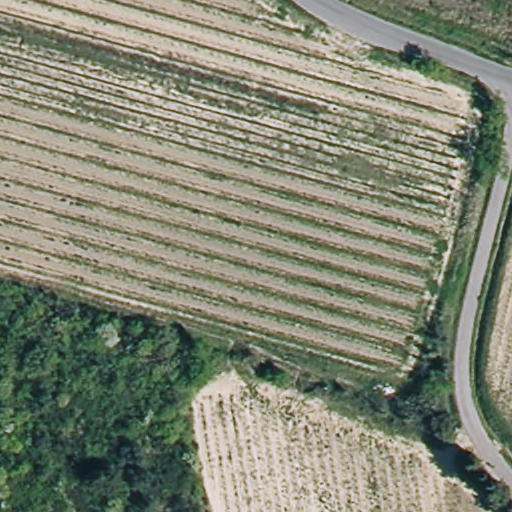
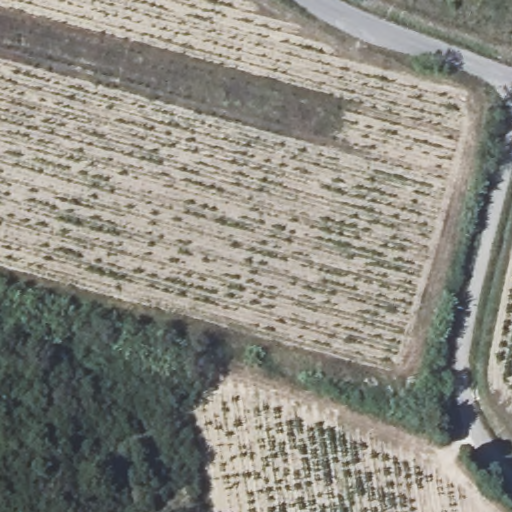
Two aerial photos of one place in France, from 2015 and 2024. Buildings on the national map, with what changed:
[]

